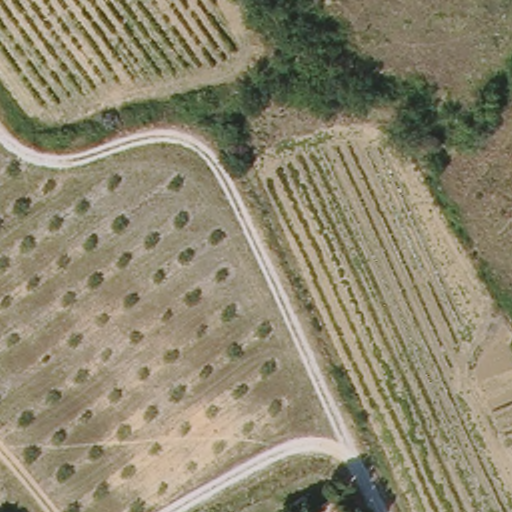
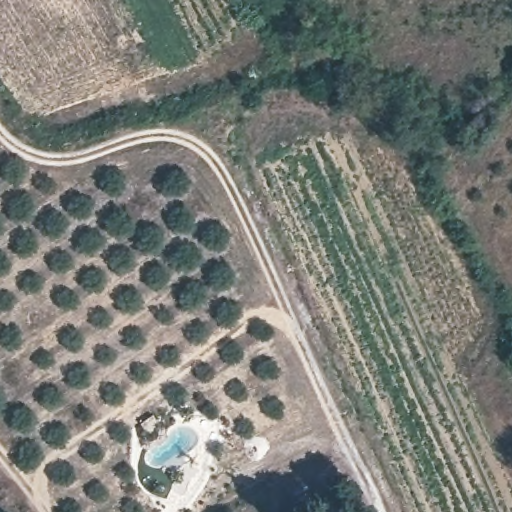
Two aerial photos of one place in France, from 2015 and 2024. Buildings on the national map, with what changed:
unchanged [(335,503),(340,512),(312,512),(335,503)]

